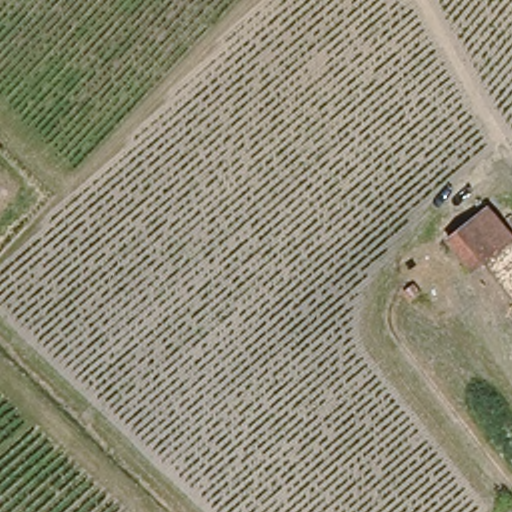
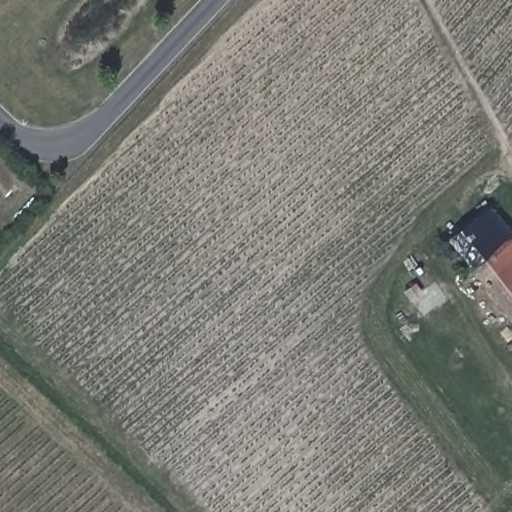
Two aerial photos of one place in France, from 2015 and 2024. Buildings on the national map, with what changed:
unchanged [(447,234),(471,213),(485,202),(512,234),(512,316),(471,265),(447,234)]

